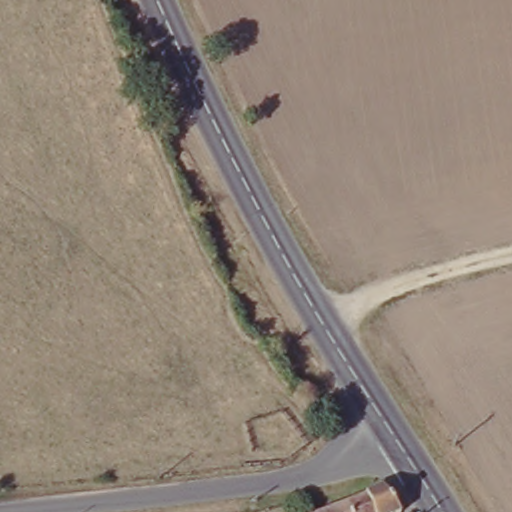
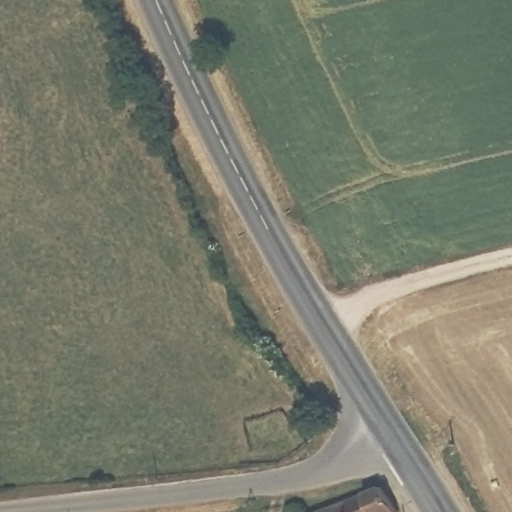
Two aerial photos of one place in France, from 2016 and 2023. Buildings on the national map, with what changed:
unchanged [(394,512),(322,512),(381,487),(394,512)]

